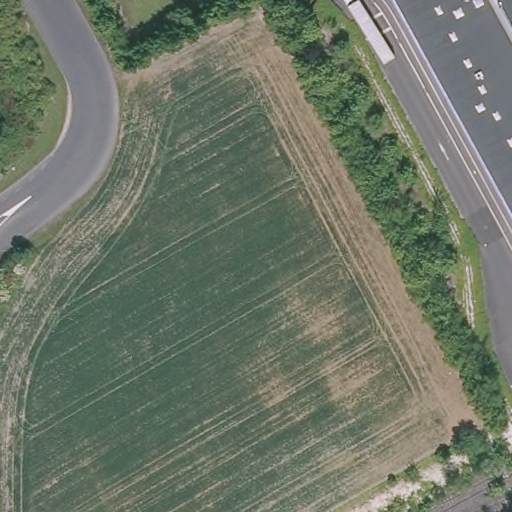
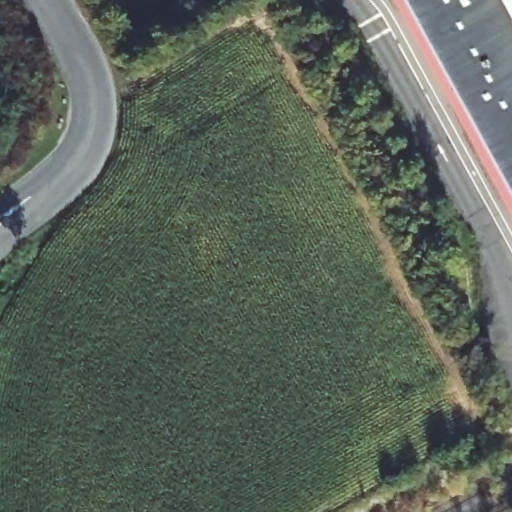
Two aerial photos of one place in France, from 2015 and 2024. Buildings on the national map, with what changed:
unchanged [(512,206),(399,0),(512,0),(512,206)]

